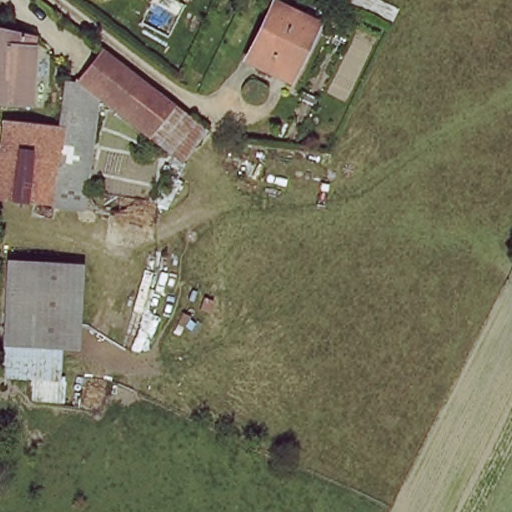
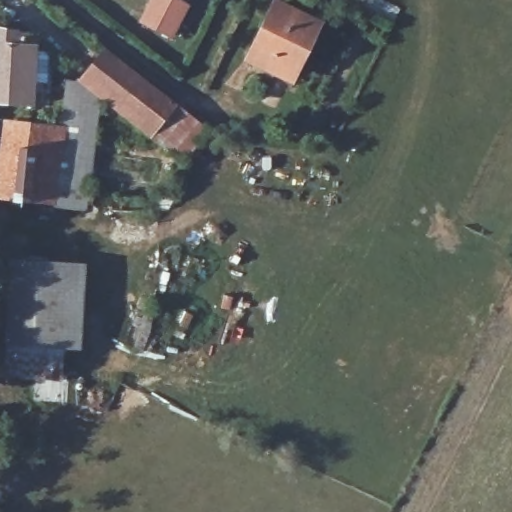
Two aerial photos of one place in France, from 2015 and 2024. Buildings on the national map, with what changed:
new [(177,0),(186,4),(170,36),(142,22),(153,0),(177,0)]
unchanged [(316,32),(291,85),(249,65),(273,13),(316,32)]
unchanged [(33,41),(30,109),(0,107),(0,34),(33,41)]
unchanged [(66,210),(54,209),(22,205),(0,203),(3,181),(0,181),(0,161),(1,157),(7,157),(10,127),(58,133),(63,86),(68,86),(67,91),(79,92),(105,55),(142,84),(166,103),(175,109),(151,139),(102,101),(87,196),(85,212),(66,210)]
unchanged [(175,109),(182,115),(185,118),(205,133),(182,163),(168,152),(151,139),(175,109)]
unchanged [(178,182),(169,177),(176,164),(185,169),(178,182)]
unchanged [(14,266),(67,269),(64,351),(11,348),(14,266)]
unchanged [(63,383),(9,380),(11,348),(64,351),(63,383)]

